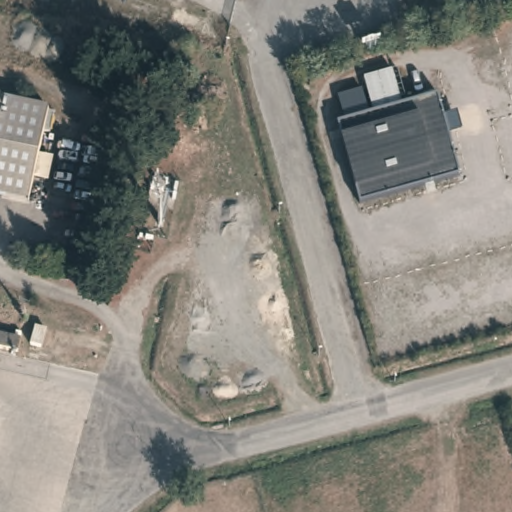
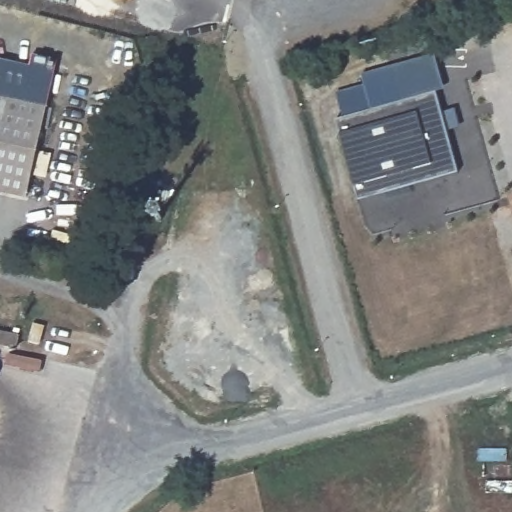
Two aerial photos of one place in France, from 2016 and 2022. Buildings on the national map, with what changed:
new [(49,108),(0,97),(0,58),(28,65),(30,58),(57,64),(49,108)]
unchanged [(372,111),(365,74),(390,68),(400,102),(435,92),(459,175),(359,203),(337,120),(372,111)]
unchanged [(49,108),(27,197),(0,192),(0,97),(49,108)]
unchanged [(34,323),(42,325),(40,336),(32,333),(34,323)]
unchanged [(14,348),(0,345),(0,331),(17,336),(14,348)]

